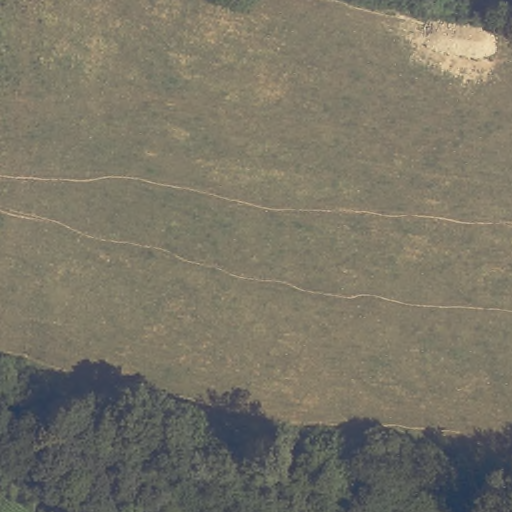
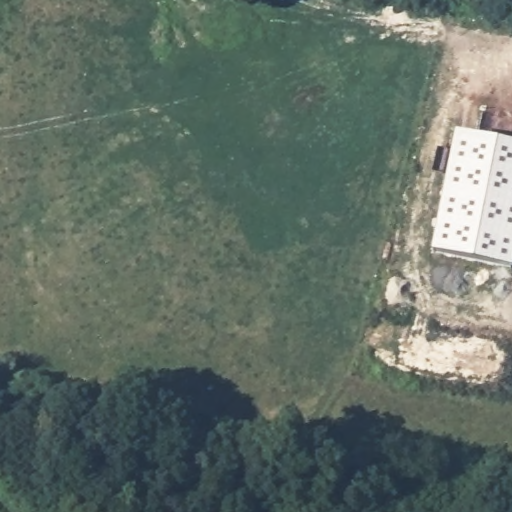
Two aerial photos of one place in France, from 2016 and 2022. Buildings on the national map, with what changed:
new [(512,143),(512,269),(431,253),(455,132),(512,143)]

